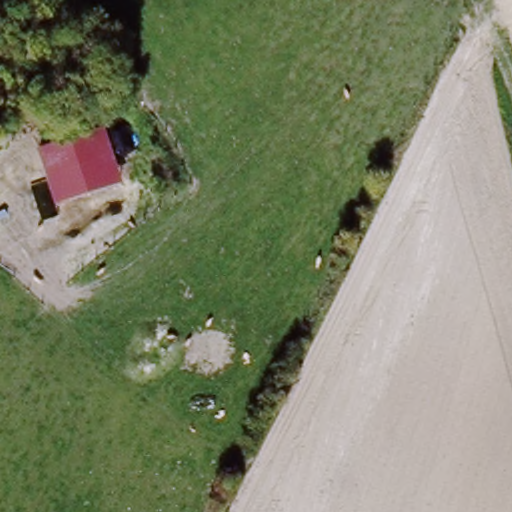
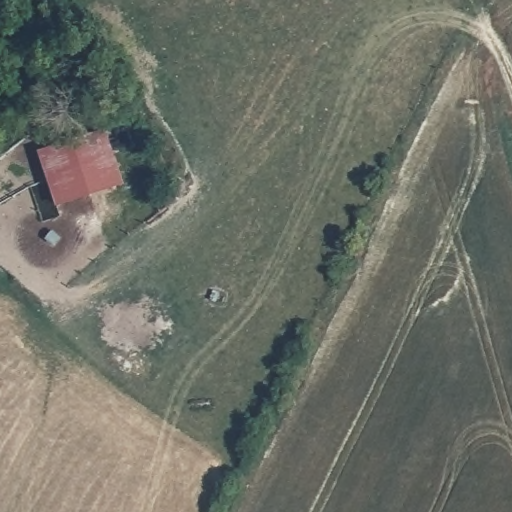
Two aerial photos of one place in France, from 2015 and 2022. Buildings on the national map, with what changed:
unchanged [(37,160),(95,125),(125,175),(67,210),(37,160)]

